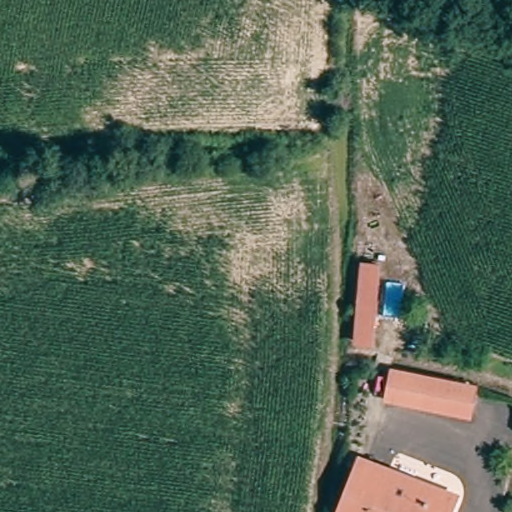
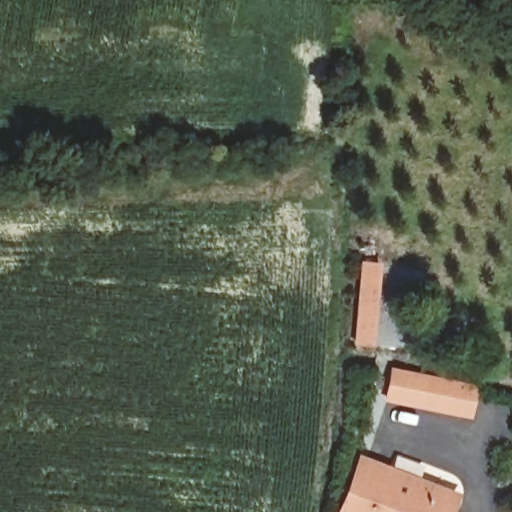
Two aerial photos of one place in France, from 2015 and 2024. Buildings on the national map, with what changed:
unchanged [(375,265),(368,347),(352,345),(355,262),(375,265)]
unchanged [(445,410),(401,399),(408,376),(450,386),(445,410)]
unchanged [(448,497),(443,512),(333,512),(351,458),(448,497)]

